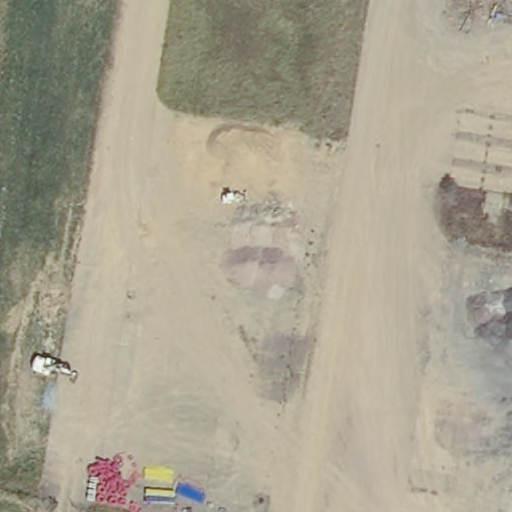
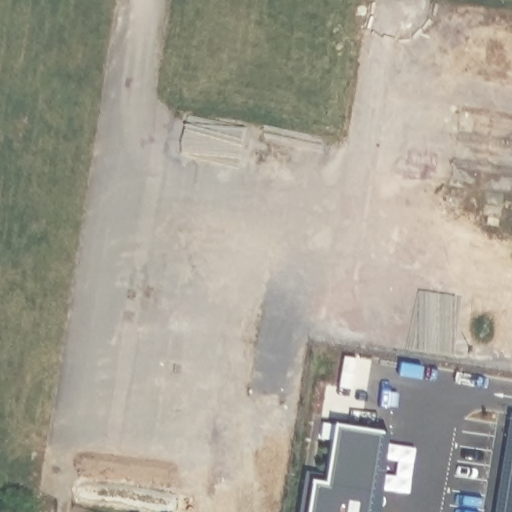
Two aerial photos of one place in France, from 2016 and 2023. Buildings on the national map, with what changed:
new [(323,496),(332,427),(386,435),(375,512),(301,512),(305,491),(323,496)]

